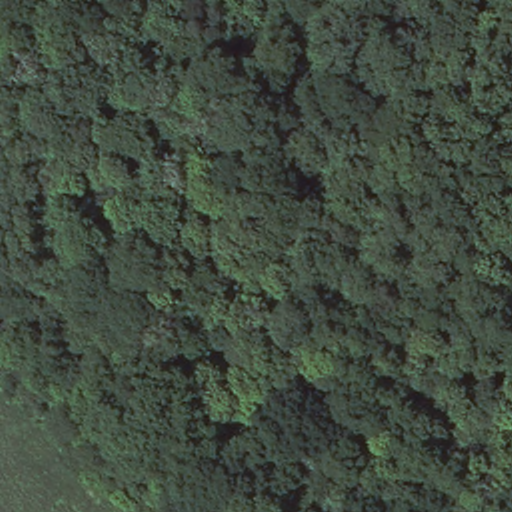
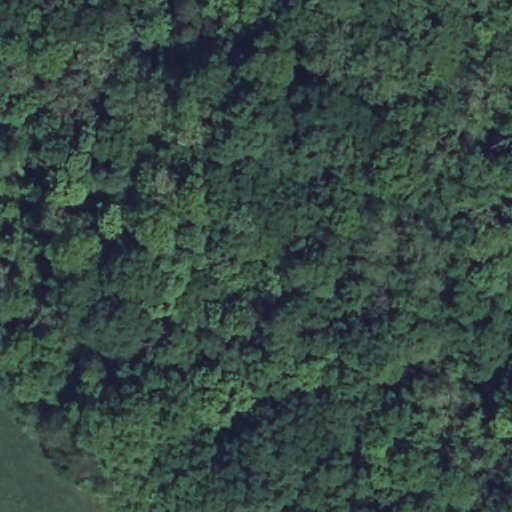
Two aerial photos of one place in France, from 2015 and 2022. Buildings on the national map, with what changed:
[]

